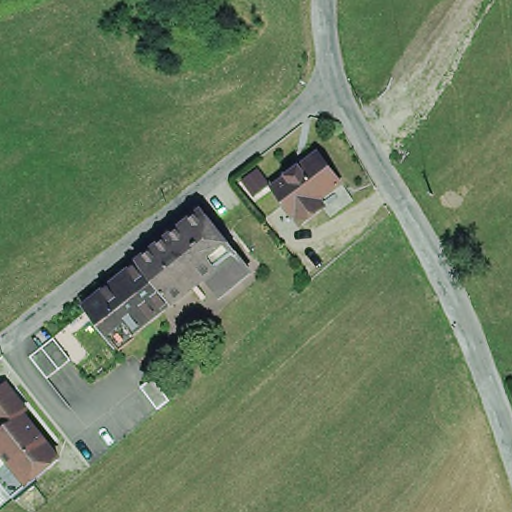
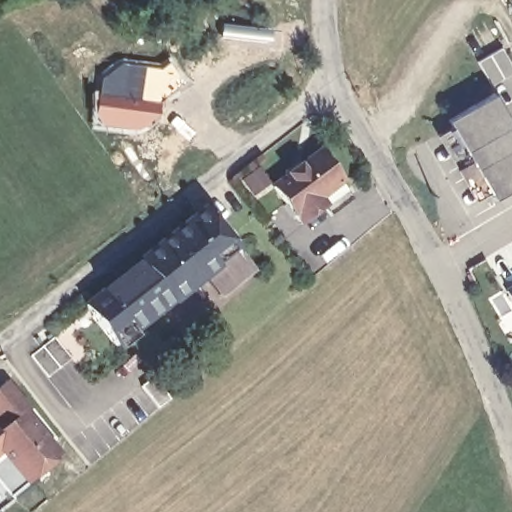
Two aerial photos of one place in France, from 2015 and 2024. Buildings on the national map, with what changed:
new [(95,93),(98,76),(104,71),(114,63),(119,60),(158,64),(170,58),(186,86),(163,103),(161,107),(159,121),(158,121),(138,133),(98,130),(96,126),(93,125),(92,93),(95,93)]
new [(495,199),(449,121),(494,95),(512,125),(512,189),(495,199)]
unchanged [(317,219),(301,231),(274,195),(288,183),(289,177),(293,174),(299,174),(313,163),(319,159),(341,188),(336,193),(318,207),(324,214),(317,219)]
unchanged [(226,298),(211,280),(122,348),(91,308),(193,228),(209,214),(223,231),(256,275),(226,298)]
demolished [(243,215),(275,259),(256,275),(223,231),(243,215)]
new [(504,288),(512,283),(512,300),(504,288)]
unchanged [(30,357),(43,348),(54,338),(70,359),(58,368),(47,377),(30,357)]
unchanged [(153,377),(171,400),(158,409),(141,387),(153,377)]
unchanged [(28,416),(23,420),(58,464),(27,489),(0,456),(0,393),(5,389),(28,416)]
unchanged [(0,490),(0,456),(27,489),(10,503),(0,490)]

